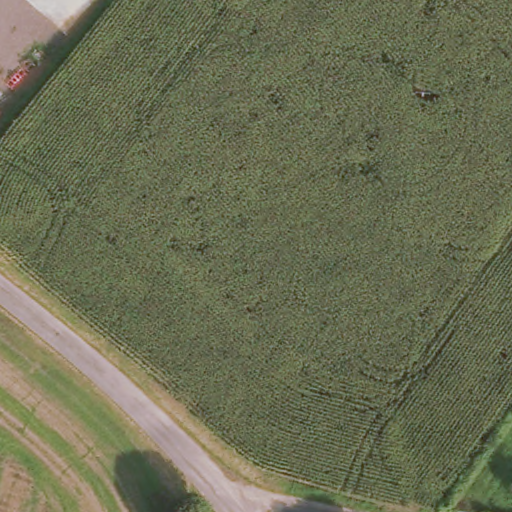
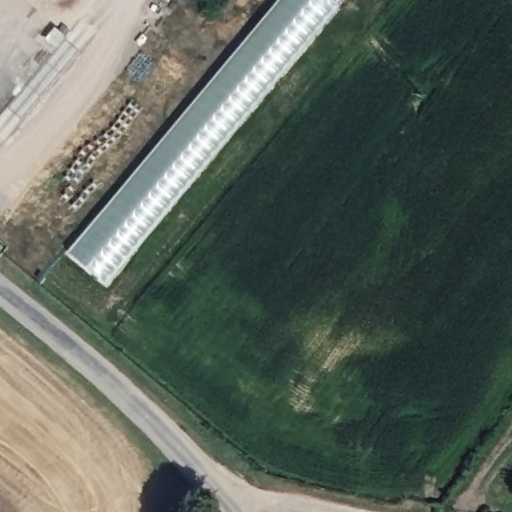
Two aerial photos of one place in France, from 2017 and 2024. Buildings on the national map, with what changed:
new [(327,0),(339,10),(104,280),(71,255),(280,0),(327,0)]

